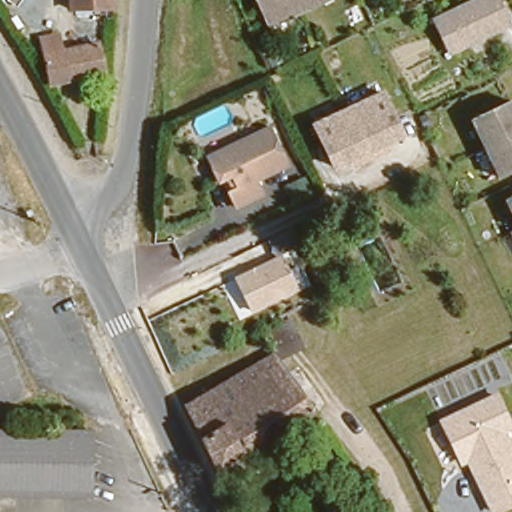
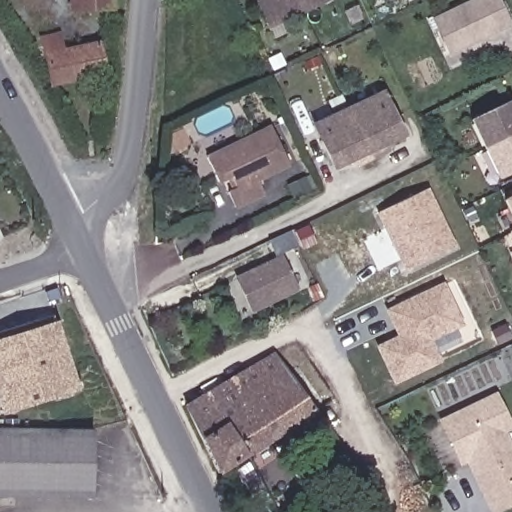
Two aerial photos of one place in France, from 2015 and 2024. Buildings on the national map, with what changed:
unchanged [(101,17),(100,3),(65,4),(64,0),(107,0),(107,17),(101,17)]
unchanged [(249,0),(318,0),(261,25),(249,0)]
unchanged [(476,0),(496,0),(508,26),(448,55),(432,21),(476,0)]
unchanged [(94,80),(44,81),(45,32),(60,32),(61,51),(93,50),(94,80)]
unchanged [(397,129),(400,134),(381,143),(384,150),(353,164),(350,158),(331,167),(329,162),(312,125),(380,93),(397,129)]
unchanged [(492,176),(465,118),(505,99),(512,114),(512,167),(492,176)]
unchanged [(285,163),(253,179),(259,192),(231,206),(224,190),(233,185),(227,174),(214,181),(202,156),(267,125),(285,163)]
new [(405,271),(376,213),(428,188),(456,246),(405,271)]
unchanged [(505,197),(512,194),(512,210),(505,197)]
unchanged [(510,228),(512,228),(512,231),(510,228)]
new [(0,238),(0,233),(1,237),(0,238)]
unchanged [(281,254),(300,290),(251,312),(234,276),(281,254)]
new [(431,339),(441,362),(392,384),(375,346),(396,336),(385,309),(443,281),(463,325),(431,339)]
new [(0,337),(56,319),(78,389),(2,413),(0,407),(0,337)]
unchanged [(182,408),(272,353),(292,384),(227,423),(246,457),(246,459),(215,476),(182,408)]
unchanged [(312,415),(246,457),(227,423),(292,384),(312,415)]
unchanged [(496,512),(490,512),(465,463),(460,466),(438,418),(497,391),(512,423),(512,429),(505,432),(512,445),(512,505),(496,512)]
unchanged [(76,494),(0,493),(0,428),(39,428),(77,428),(76,494)]
new [(77,428),(95,429),(92,497),(0,495),(0,493),(76,494),(77,428)]

